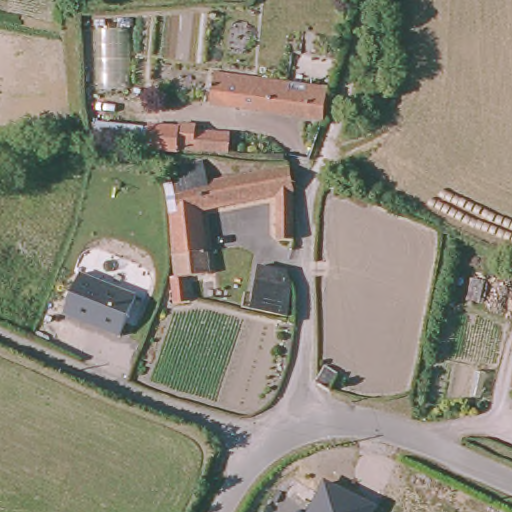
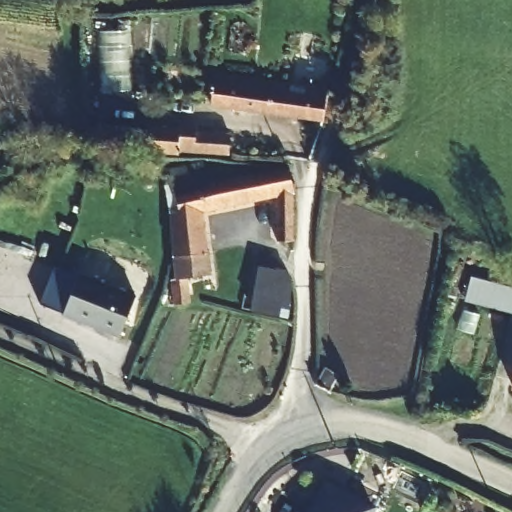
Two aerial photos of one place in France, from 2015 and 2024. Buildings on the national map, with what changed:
unchanged [(211,104),(214,74),(282,85),(281,93),(329,100),(327,109),(323,122),(211,104)]
unchanged [(181,130),(180,139),(236,146),(234,157),(178,150),(177,153),(154,151),(156,127),(181,130)]
unchanged [(167,271),(171,270),(164,218),(169,217),(156,173),(189,166),(194,186),(267,170),(279,171),(284,195),(284,198),(284,244),(266,244),(263,200),(189,215),(191,252),(199,289),(183,291),(186,316),(174,317),(173,292),(167,271)]
unchanged [(255,313),(261,269),(268,270),(286,272),(284,316),(269,314),(255,313)]
unchanged [(136,295),(120,336),(63,314),(80,273),(136,295)]
new [(472,276),(512,286),(512,313),(465,301),(472,276)]
new [(340,373),(332,391),(318,384),(324,366),(340,373)]
unchanged [(327,487),(374,510),(373,512),(314,512),(327,487)]

